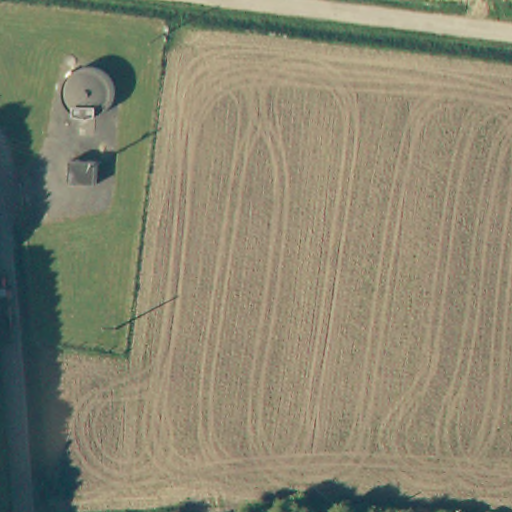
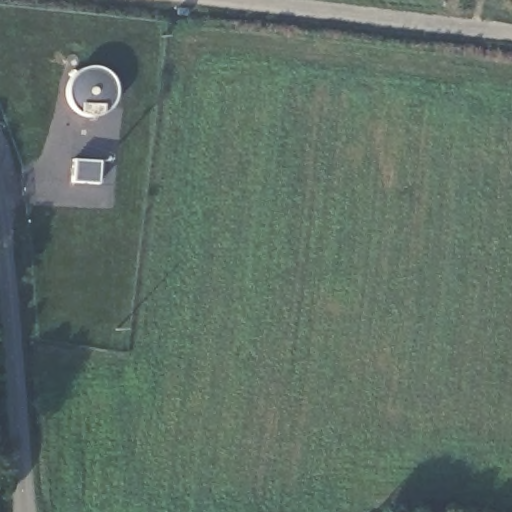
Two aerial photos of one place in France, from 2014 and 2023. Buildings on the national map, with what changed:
unchanged [(106,156),(104,179),(74,177),(76,154),(106,156)]

